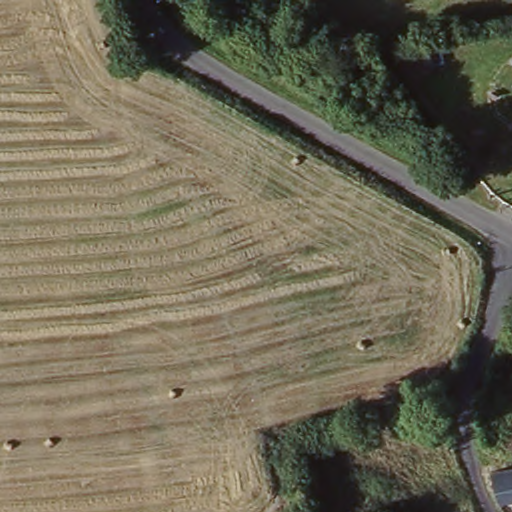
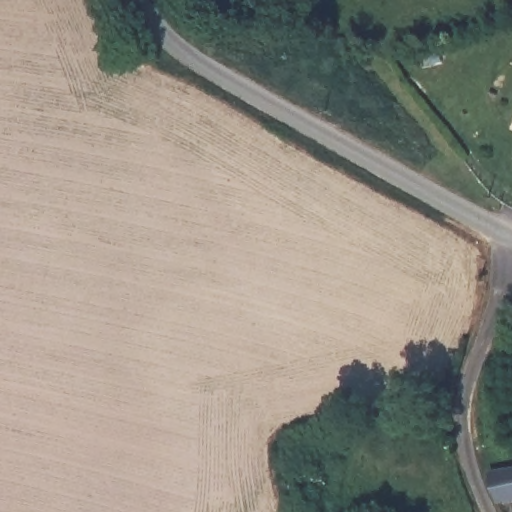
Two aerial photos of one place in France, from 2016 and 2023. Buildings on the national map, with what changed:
unchanged [(488,478),(512,471),(512,503),(503,506),(498,506),(488,478)]

